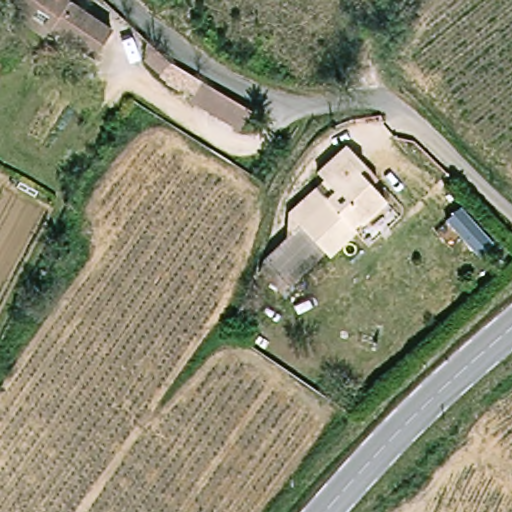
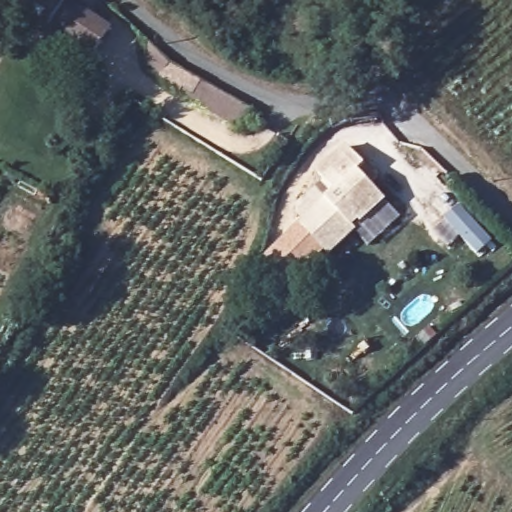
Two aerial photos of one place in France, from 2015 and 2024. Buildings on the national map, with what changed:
unchanged [(93,59),(1,0),(58,0),(110,33),(93,59)]
unchanged [(240,132),(187,100),(198,82),(251,111),(240,132)]
unchanged [(365,165),(358,172),(387,204),(363,226),(360,220),(352,227),(355,234),(327,257),(296,224),(334,191),(321,178),(316,172),(347,146),(365,165)]
unchanged [(285,230),(286,208),(321,178),(334,191),(296,224),(327,257),(289,289),(261,255),(285,230)]

